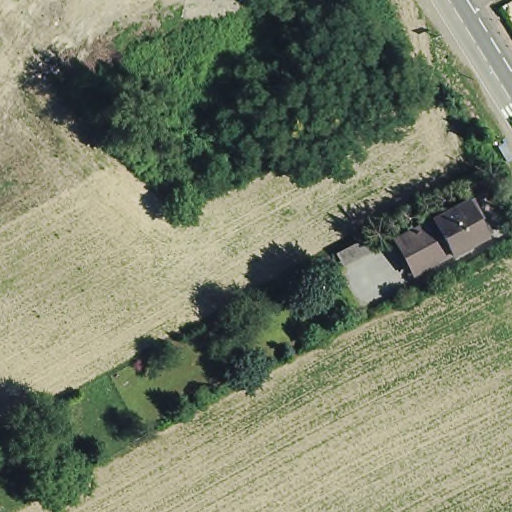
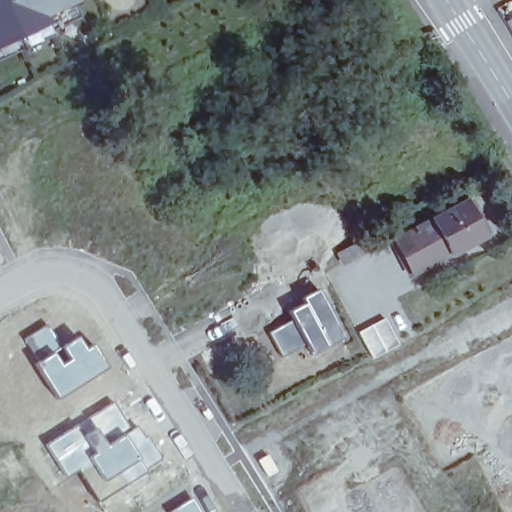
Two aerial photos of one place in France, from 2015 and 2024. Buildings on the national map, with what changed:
new [(78,5),(73,7),(47,19),(49,25),(0,47),(0,0),(76,0),(78,5)]
new [(49,25),(47,19),(73,7),(79,19),(51,32),(54,38),(0,62),(0,47),(49,25)]
unchanged [(432,218),(432,217),(467,198),(486,234),(451,253),(450,252),(415,271),(397,237),(432,218)]
new [(286,311),(301,302),(299,298),(316,288),(344,337),(311,356),(304,344),(281,357),(268,332),(291,319),(286,311)]
new [(384,317),(399,344),(371,359),(356,332),(384,317)]
new [(23,339),(46,324),(60,346),(76,336),(85,348),(91,344),(106,366),(56,399),(34,362),(36,360),(23,339)]
new [(78,472),(77,471),(66,478),(43,444),(86,417),(111,401),(131,428),(136,425),(161,459),(123,486),(98,501),(78,472)]
new [(191,497),(200,512),(167,512),(191,497)]

